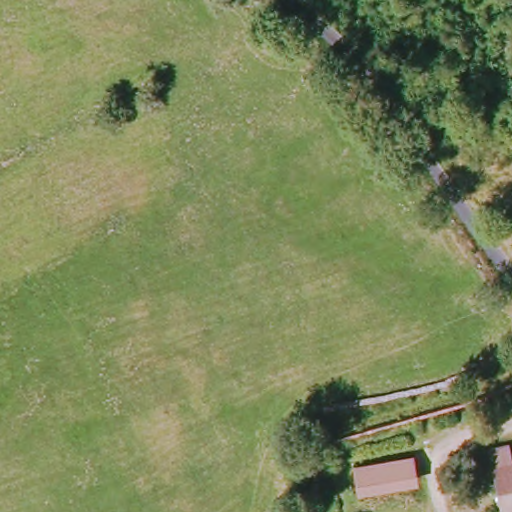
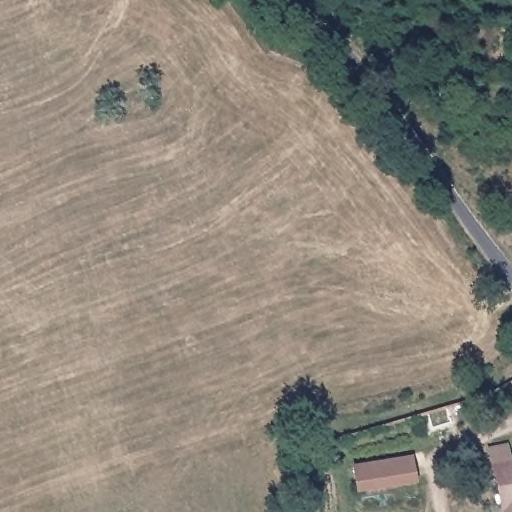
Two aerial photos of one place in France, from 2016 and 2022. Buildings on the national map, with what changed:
unchanged [(491,458),(490,445),(506,441),(508,456),(512,455),(512,512),(497,512),(491,458)]
unchanged [(417,484),(356,494),(351,465),(411,455),(417,484)]

